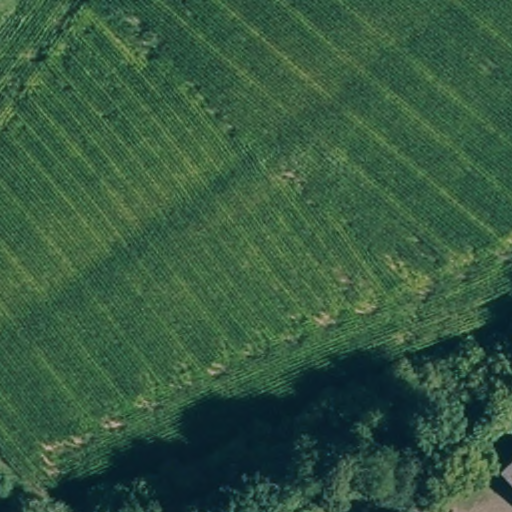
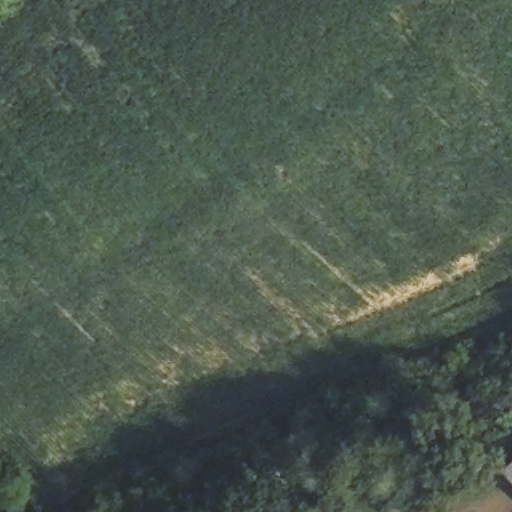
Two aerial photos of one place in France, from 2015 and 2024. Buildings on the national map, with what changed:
unchanged [(501,465),(512,456),(512,478),(501,465)]

